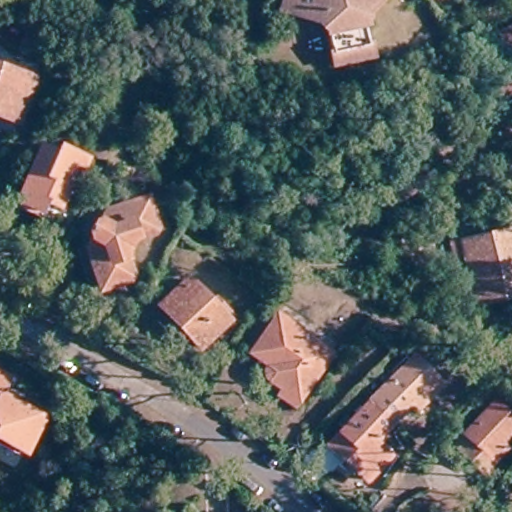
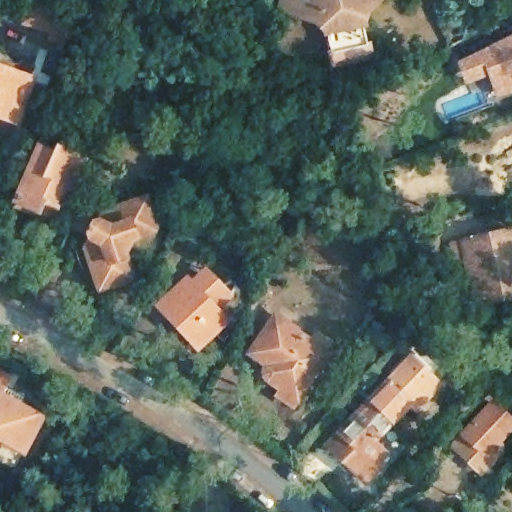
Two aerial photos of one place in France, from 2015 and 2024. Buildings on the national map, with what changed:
unchanged [(358,26),(366,59),(328,67),(322,35),(312,25),(274,13),(278,0),(379,0),(362,14),(358,26)]
demolished [(480,85),(508,72),(492,37),(512,29),(512,94),(488,105),(480,85)]
new [(496,97),(488,77),(465,86),(456,63),(512,35),(512,90),(496,97)]
unchanged [(0,62),(1,62),(4,69),(13,79),(20,74),(34,79),(29,95),(14,136),(0,130),(0,62)]
unchanged [(16,204),(40,150),(57,157),(60,152),(85,164),(71,193),(66,191),(57,209),(44,203),(39,214),(16,204)]
unchanged [(130,287),(99,298),(92,277),(84,258),(89,248),(86,241),(91,231),(97,229),(102,219),(142,205),(153,234),(151,238),(130,246),(123,260),(125,265),(132,282),(130,287)]
unchanged [(512,233),(512,298),(477,305),(460,244),(512,233)]
unchanged [(186,282),(193,290),(206,277),(230,302),(217,315),(227,324),(200,350),(159,308),(186,282)]
unchanged [(281,320),(334,357),(298,407),(285,399),(289,395),(273,382),(270,378),(269,376),(270,374),(273,368),(255,356),(281,320)]
unchanged [(325,451),(333,437),(406,362),(433,389),(412,412),(406,406),(368,445),(383,459),(361,483),(325,451)]
unchanged [(0,383),(0,378),(2,379),(0,383)]
unchanged [(0,400),(35,419),(20,447),(16,454),(0,445),(0,400)]
unchanged [(452,448),(492,408),(512,426),(512,431),(498,446),(502,451),(481,474),(452,448)]

